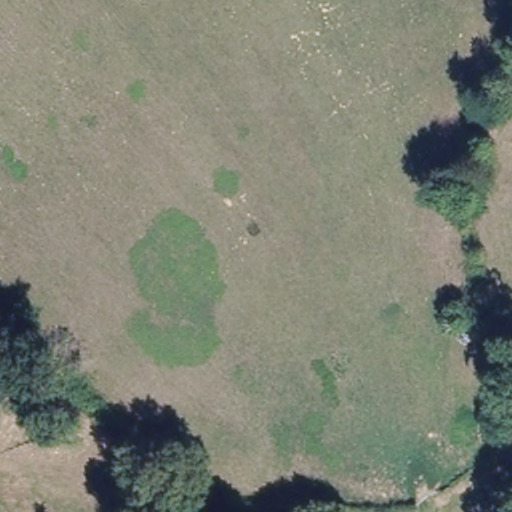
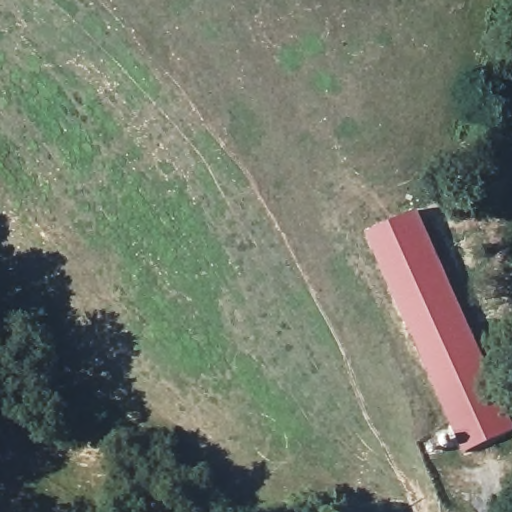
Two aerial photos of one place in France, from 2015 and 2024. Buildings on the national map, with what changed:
new [(512,427),(512,428),(463,451),(363,234),(415,211),(512,427)]

